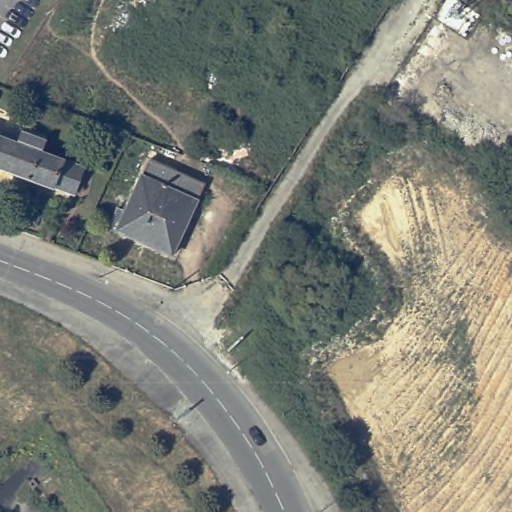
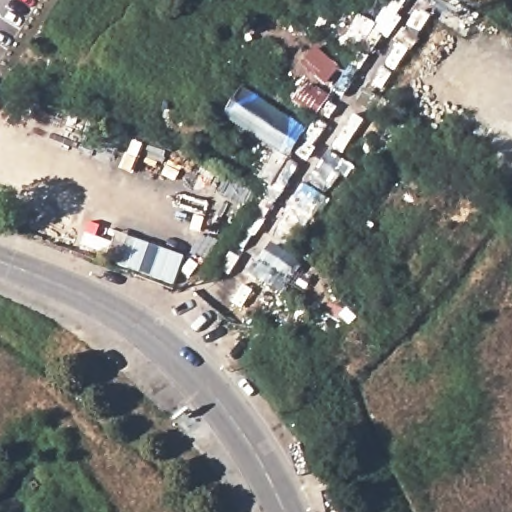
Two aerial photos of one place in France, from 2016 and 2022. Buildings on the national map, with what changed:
demolished [(14,134),(11,140),(18,143),(22,132),(44,140),(39,150),(83,167),(73,195),(0,168),(0,135),(3,129),(14,134)]
demolished [(209,189),(175,261),(121,235),(121,234),(114,231),(122,213),(130,216),(154,164),(209,189)]
demolished [(52,230),(48,242),(41,239),(46,228),(52,230)]

